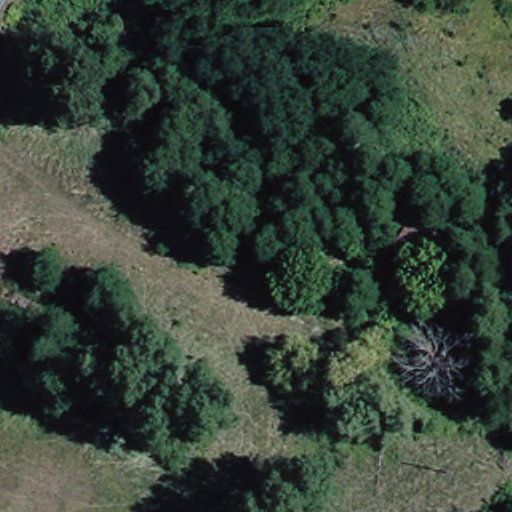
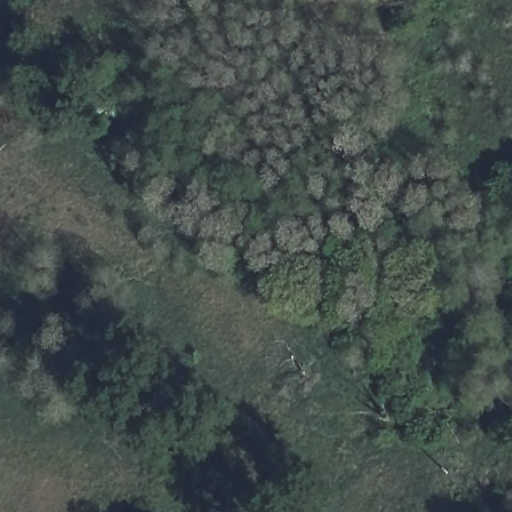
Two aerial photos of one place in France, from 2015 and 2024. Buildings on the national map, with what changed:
unchanged [(421,212),(443,227),(427,252),(407,282),(383,267),(402,239),(421,212)]

